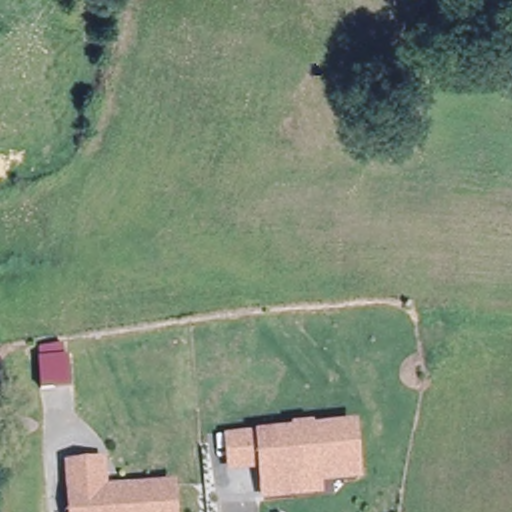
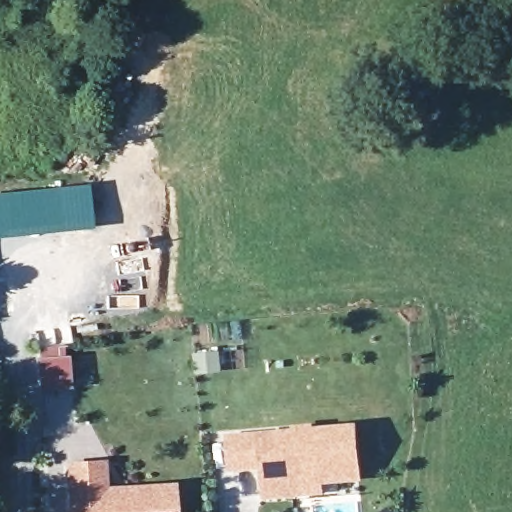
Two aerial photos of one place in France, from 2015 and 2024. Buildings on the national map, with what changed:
new [(93,229),(36,236),(0,238),(0,193),(89,184),(93,229)]
new [(65,344),(66,356),(70,355),(71,388),(40,390),(39,345),(65,344)]
unchanged [(291,486),(265,488),(261,457),(231,460),(227,431),(258,427),(352,417),(357,461),(317,465),(320,482),(291,486)]
unchanged [(76,462),(101,461),(110,460),(112,487),(180,483),(182,512),(80,512),(79,490),(76,462)]

